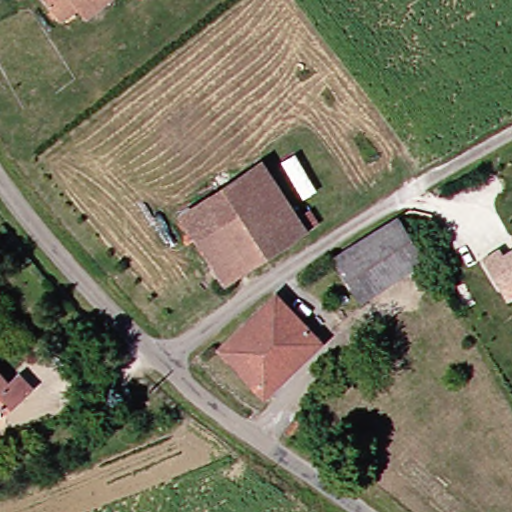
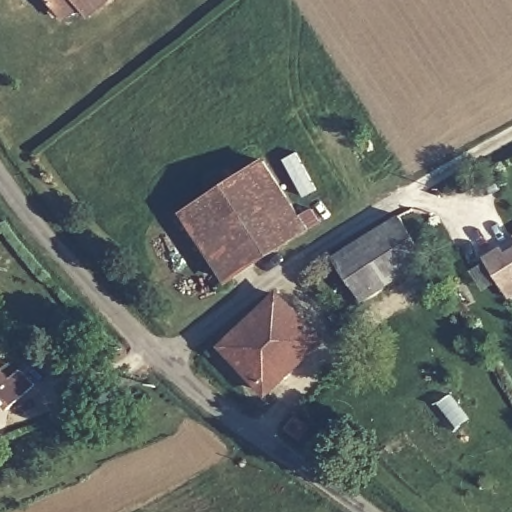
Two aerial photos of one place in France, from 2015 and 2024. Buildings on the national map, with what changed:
unchanged [(95,21),(89,11),(71,25),(52,0),(121,0),(119,1),(95,21)]
unchanged [(308,211),(318,226),(233,286),(186,217),(260,166),(296,218),(308,211)]
unchanged [(372,305),(340,266),(401,216),(431,254),(372,305)]
unchanged [(484,260),(499,248),(504,254),(512,247),(512,280),(504,286),(484,260)]
unchanged [(230,347),(274,309),(278,315),(296,299),(333,341),(317,355),(306,340),(258,380),(230,347)]
unchanged [(271,394),(258,380),(306,340),(317,355),(271,394)]
unchanged [(13,379),(25,367),(42,385),(18,410),(9,401),(0,409),(0,366),(13,379)]
unchanged [(321,430),(305,446),(285,431),(303,412),(321,430)]

